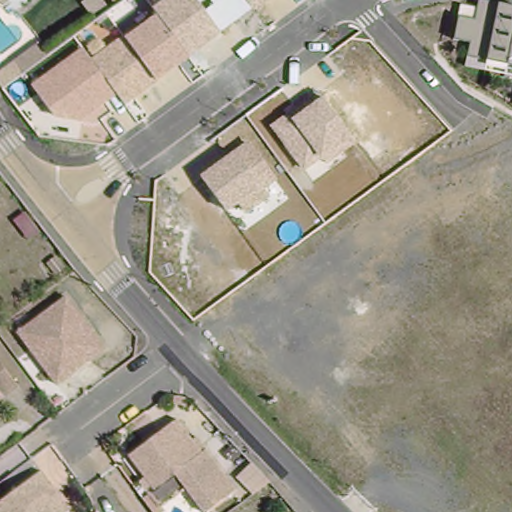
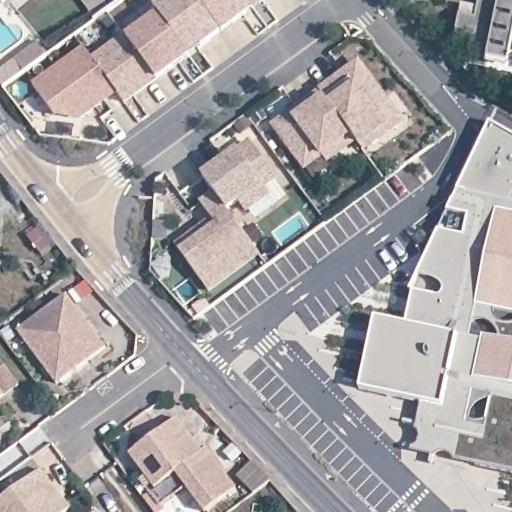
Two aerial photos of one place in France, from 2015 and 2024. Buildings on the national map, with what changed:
unchanged [(3,7),(0,3),(0,0),(10,0),(3,7)]
unchanged [(83,49),(92,59),(124,35),(126,37),(157,14),(153,7),(163,0),(268,0),(256,9),(222,35),(157,81),(124,104),(118,96),(85,122),(54,115),(33,85),(83,49)]
unchanged [(462,5),(477,7),(479,0),(487,0),(500,4),(512,6),(512,73),(486,69),(467,64),(471,40),(456,37),(462,5)]
new [(406,122),(364,155),(355,143),(339,119),(323,97),(358,60),(406,122)]
unchanged [(271,125),(317,91),(323,97),(339,119),(355,143),(326,166),(322,160),(303,172),(271,125)]
new [(475,306),(468,339),(512,348),(512,473),(476,466),(481,439),(422,427),(428,403),(360,389),(374,318),(407,325),(414,291),(490,124),(512,136),(512,314),(475,306)]
unchanged [(201,175),(236,150),(250,141),(277,179),(266,189),(271,196),(244,214),(238,204),(226,211),(201,175)]
new [(226,211),(261,256),(210,294),(180,252),(174,246),(211,218),(199,202),(212,191),(226,211)]
unchanged [(102,348),(55,383),(15,330),(61,291),(102,348)]
unchanged [(0,400),(0,360),(19,387),(0,400)]
unchanged [(177,478),(162,489),(132,453),(178,415),(234,484),(203,509),(177,478)]
unchanged [(253,463),(271,482),(254,495),(237,478),(253,463)]
unchanged [(67,512),(0,512),(0,507),(44,477),(67,512)]

